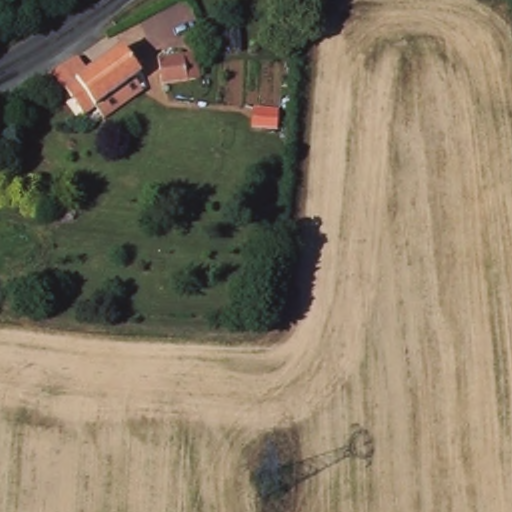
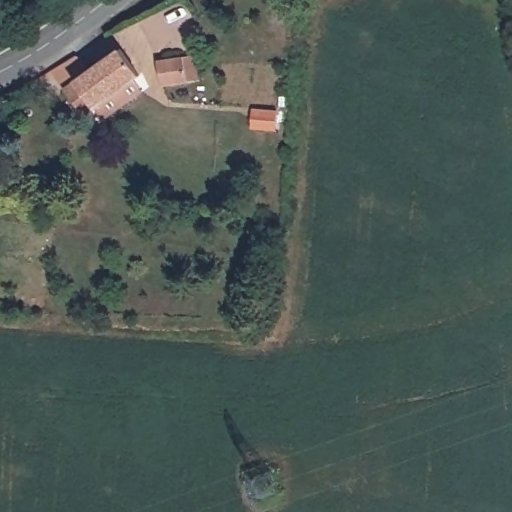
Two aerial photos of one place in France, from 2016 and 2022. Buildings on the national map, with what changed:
unchanged [(103,114),(95,104),(84,111),(65,84),(52,66),(76,51),(79,53),(88,67),(120,44),(140,71),(134,75),(142,87),(103,114)]
unchanged [(191,55),(194,80),(157,86),(153,61),(191,55)]
unchanged [(277,111),(276,130),(251,128),(253,109),(277,111)]

